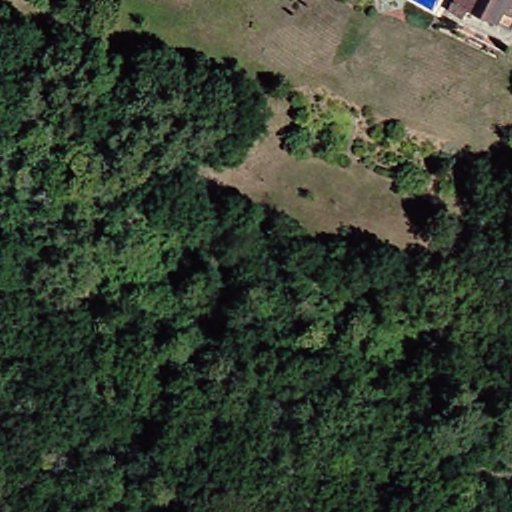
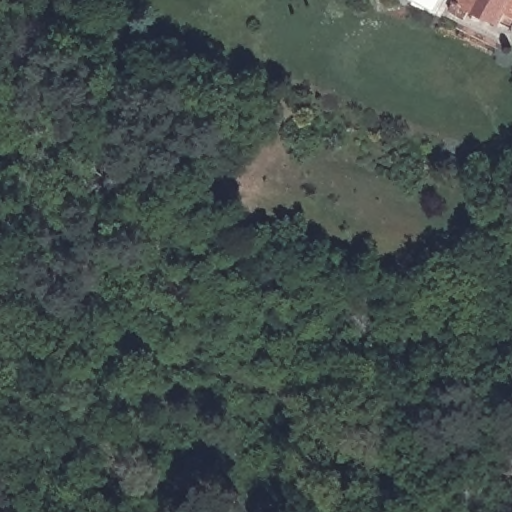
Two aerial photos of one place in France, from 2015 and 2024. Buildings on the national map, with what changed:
unchanged [(512,10),(495,37),(454,10),(449,19),(434,9),(440,0),(512,0),(512,10)]

